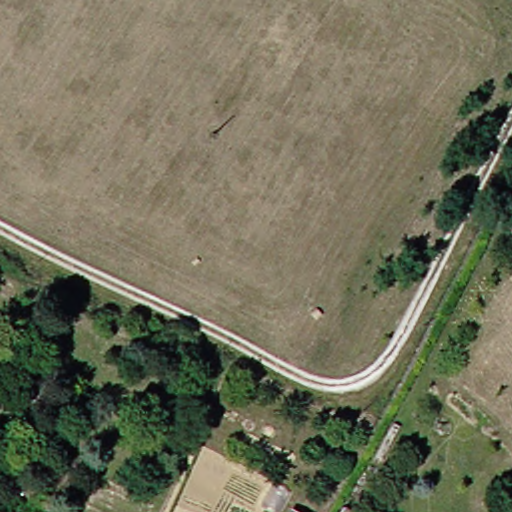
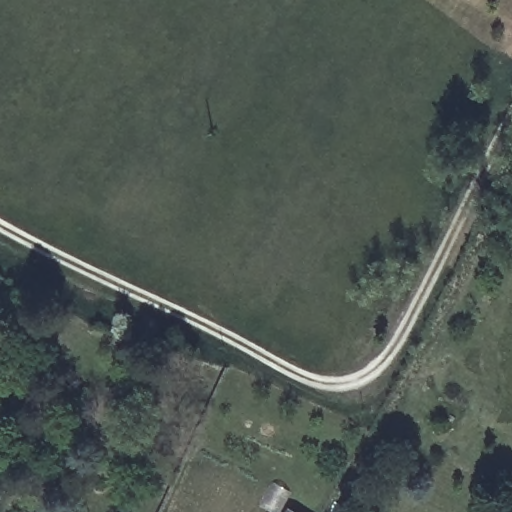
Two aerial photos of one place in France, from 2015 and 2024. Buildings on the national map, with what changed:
unchanged [(297,512),(288,512),(290,508),(297,512)]
unchanged [(350,512),(344,512),(346,509),(350,512)]

